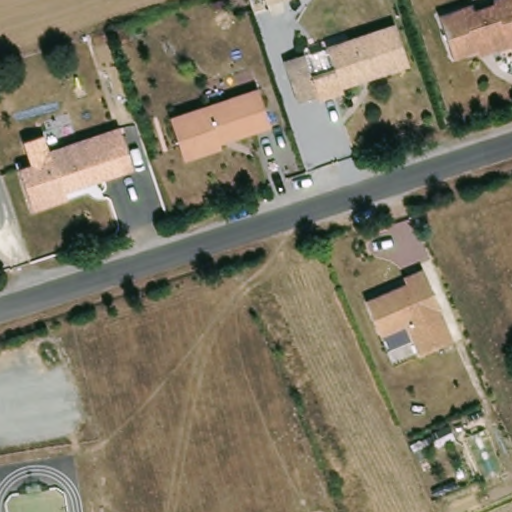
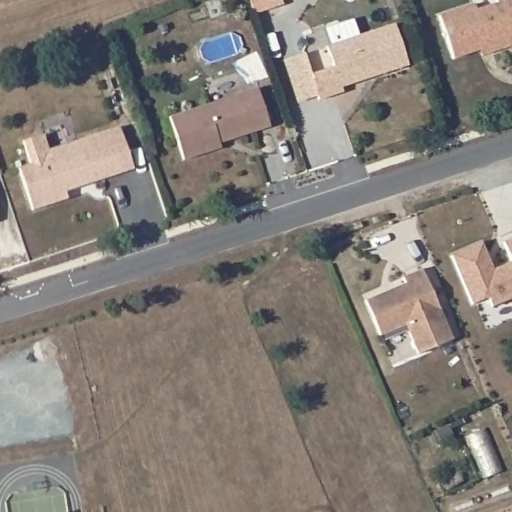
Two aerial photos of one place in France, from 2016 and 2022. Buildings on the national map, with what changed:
unchanged [(269,0),(294,0),(272,8),(269,0)]
unchanged [(453,59),(439,16),(474,5),(476,11),(498,4),(496,0),(512,0),(512,46),(482,56),(480,50),(453,59)]
unchanged [(284,65),(304,59),(310,80),(333,72),(326,51),(394,29),(408,70),(375,81),(366,84),(340,92),(342,97),(319,104),(317,100),(297,107),(284,65)]
unchanged [(220,148),(183,160),(169,117),(257,88),(269,126),(232,139),(219,143),(220,148)]
unchanged [(64,196),(67,203),(33,215),(19,173),(50,162),(48,155),(119,132),(133,174),(103,184),(82,190),(64,196)]
new [(491,307),(488,299),(472,306),(450,255),(483,240),(493,268),(511,261),(503,242),(512,238),(512,298),(491,307)]
unchanged [(457,341),(419,355),(404,321),(378,332),(368,296),(403,283),(400,277),(426,267),(457,341)]

